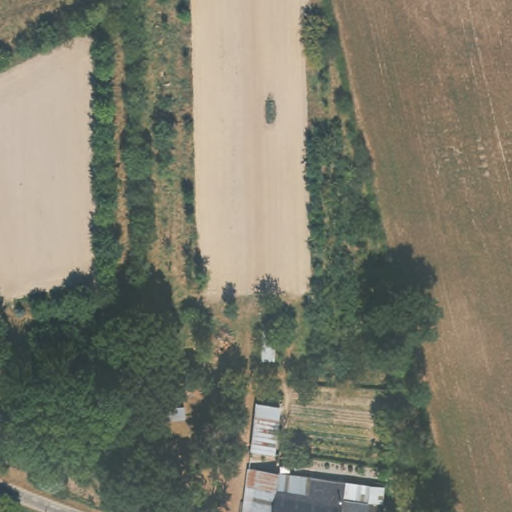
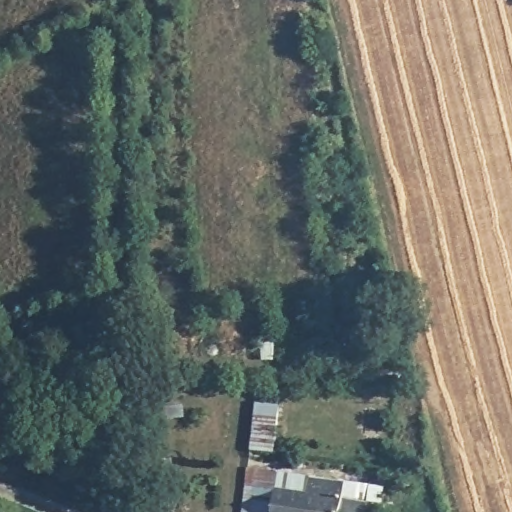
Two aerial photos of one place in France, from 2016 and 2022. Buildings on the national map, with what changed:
unchanged [(252,401),(282,404),(277,454),(247,451),(252,401)]
unchanged [(293,475),(332,481),(330,496),(354,500),(352,512),(346,512),(330,509),(330,512),(239,512),(244,484),(263,487),(291,491),(293,475)]

